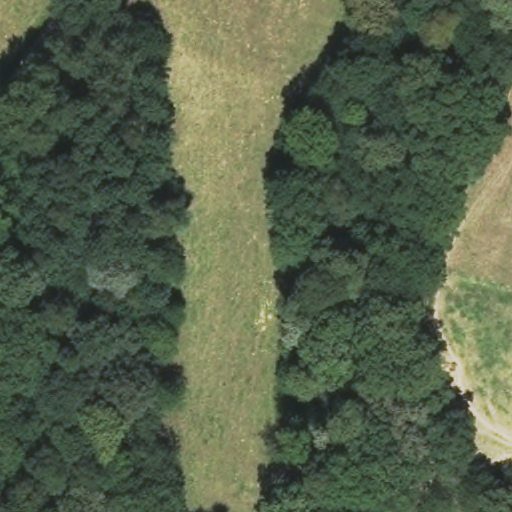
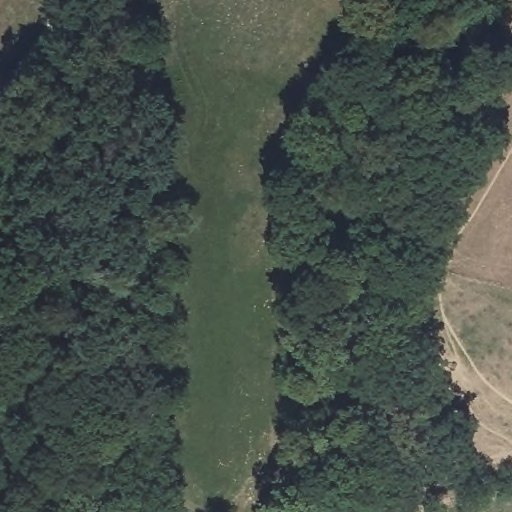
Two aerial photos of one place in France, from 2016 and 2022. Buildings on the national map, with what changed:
unchanged [(440,342),(456,358),(445,370),(431,353),(440,342)]

